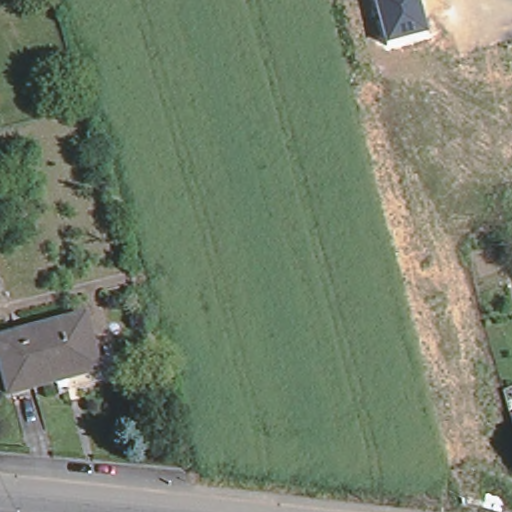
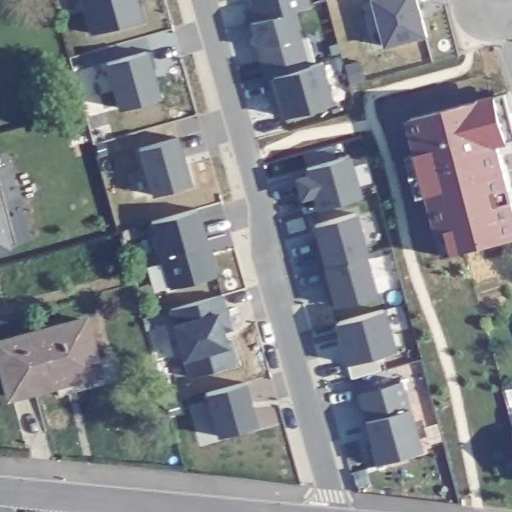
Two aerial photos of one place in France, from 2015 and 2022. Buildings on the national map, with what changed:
new [(144,19),(91,34),(82,0),(139,0),(144,19)]
new [(334,104),(283,118),(282,112),(275,112),(259,47),(252,22),(247,22),(244,7),(250,6),(249,0),(309,0),(310,5),(291,11),(307,66),(323,62),(334,104)]
unchanged [(374,0),(419,0),(429,37),(387,49),(374,0)]
new [(162,97),(119,110),(105,62),(149,51),(162,97)]
new [(512,143),(510,144),(500,147),(512,192),(512,241),(445,259),(410,122),(483,100),(482,98),(498,95),(498,97),(509,93),(512,108),(512,143)]
new [(192,183),(152,196),(138,149),(179,137),(192,183)]
new [(362,195),(315,209),(312,197),(300,200),(294,176),(307,174),(305,167),(352,155),(362,195)]
new [(17,242),(7,246),(0,247),(0,182),(17,242)]
new [(208,241),(217,276),(170,290),(160,256),(150,222),(200,210),(208,241)]
new [(378,293),(336,306),(330,308),(311,241),(317,240),(312,225),(357,212),(378,293)]
new [(235,332),(231,332),(239,363),(187,378),(169,308),(223,295),(235,332)]
new [(397,351),(346,365),(335,323),(387,310),(397,351)]
unchanged [(80,321),(90,361),(110,356),(117,381),(55,397),(51,385),(5,397),(0,377),(0,342),(80,321)]
new [(410,407),(422,450),(375,465),(363,421),(365,421),(358,392),(402,380),(410,407)]
new [(258,425),(217,437),(205,393),(246,382),(258,425)]

